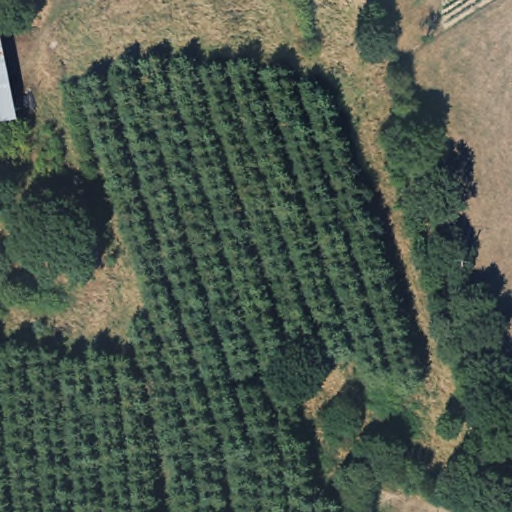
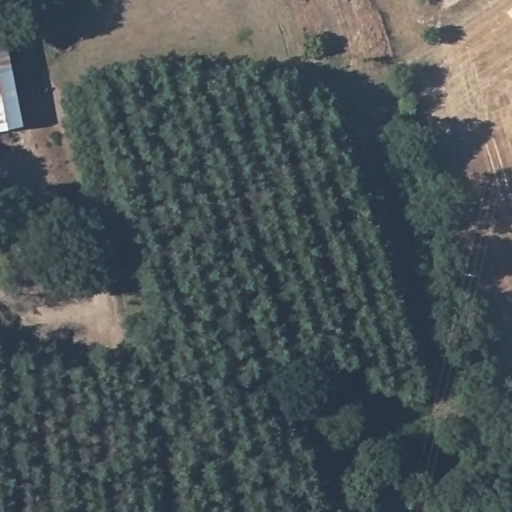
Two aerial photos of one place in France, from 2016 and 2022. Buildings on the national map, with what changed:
unchanged [(3,40),(19,129),(0,132),(0,41),(3,40)]

